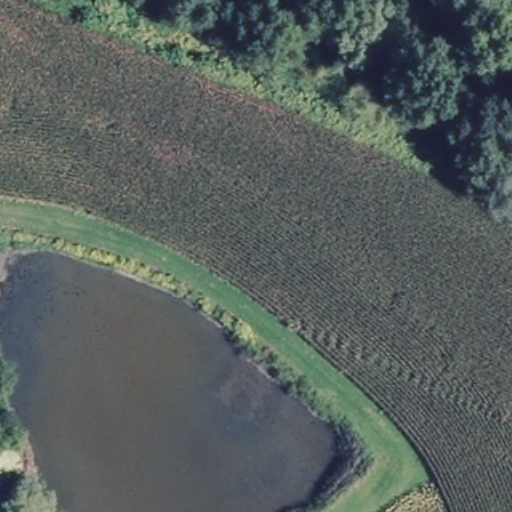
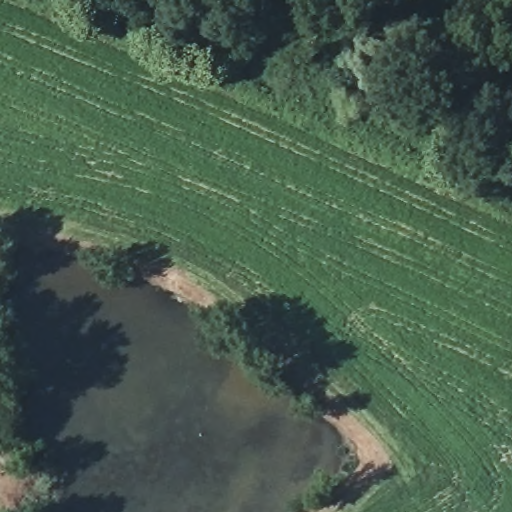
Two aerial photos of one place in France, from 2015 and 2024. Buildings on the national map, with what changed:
unchanged [(16,447),(23,470),(0,477),(0,453),(16,447)]

